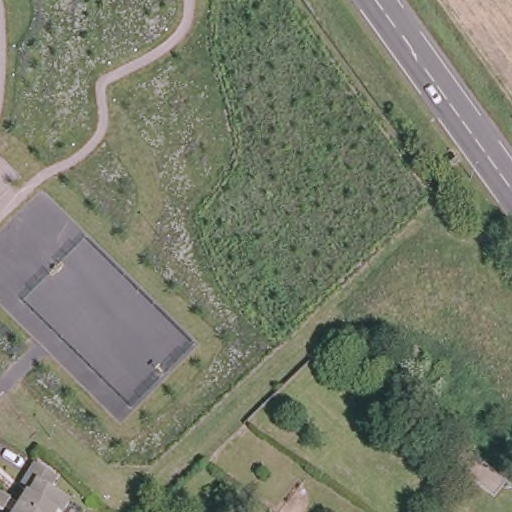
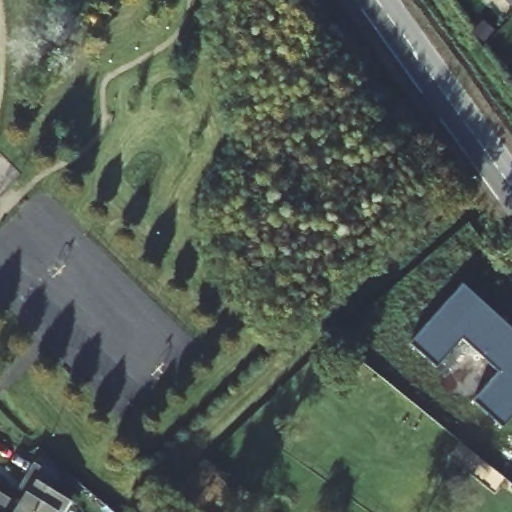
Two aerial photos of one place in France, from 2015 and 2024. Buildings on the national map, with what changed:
new [(511,0),(512,0),(512,1),(511,0)]
new [(512,327),(512,415),(504,425),(476,400),(503,371),(464,337),(439,366),(411,341),(464,281),(512,327)]
unchanged [(6,502),(3,507),(0,504),(0,489),(9,495),(20,502),(28,488),(23,485),(38,461),(59,475),(51,488),(69,501),(62,512),(13,512),(15,508),(6,502)]

